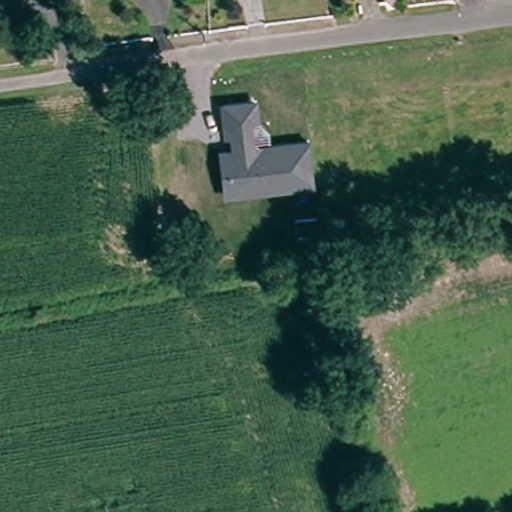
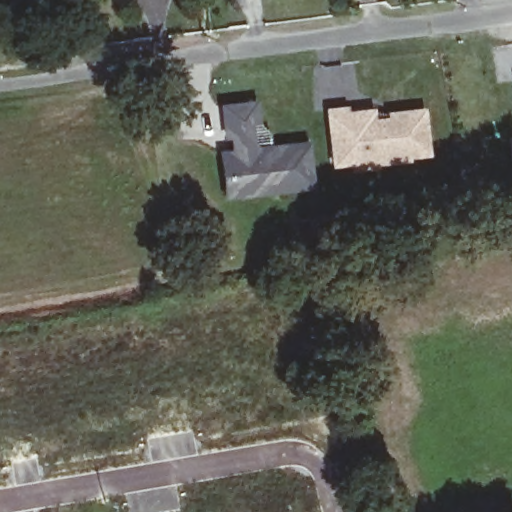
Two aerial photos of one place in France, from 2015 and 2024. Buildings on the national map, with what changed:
unchanged [(315,190),(224,201),(218,149),(224,148),(219,104),(255,99),(259,122),(269,129),(271,144),(308,140),(315,190)]
new [(387,161),(364,164),(363,157),(344,159),(338,106),(356,104),(356,109),(382,106),(382,112),(399,110),(433,106),(438,149),(399,153),(386,155),(387,161)]
new [(327,215),(329,237),(307,239),(305,217),(327,215)]

